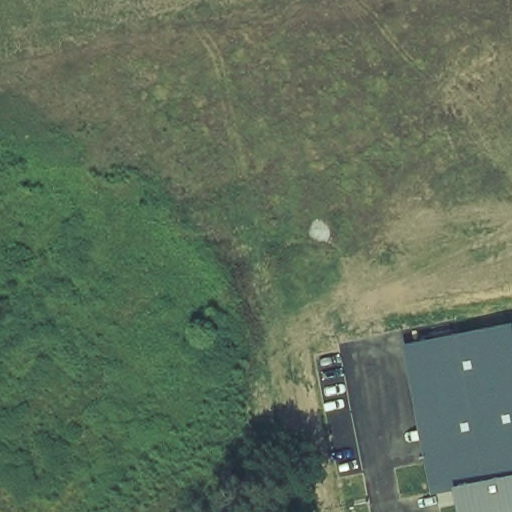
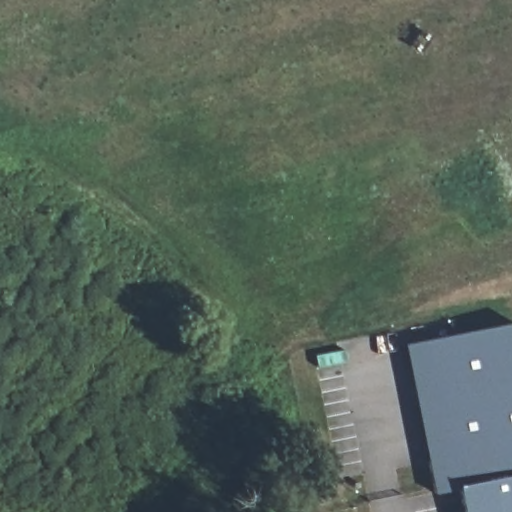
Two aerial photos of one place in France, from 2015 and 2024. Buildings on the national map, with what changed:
unchanged [(463,512),(458,487),(434,491),(404,344),(512,324),(512,512),(463,512)]

